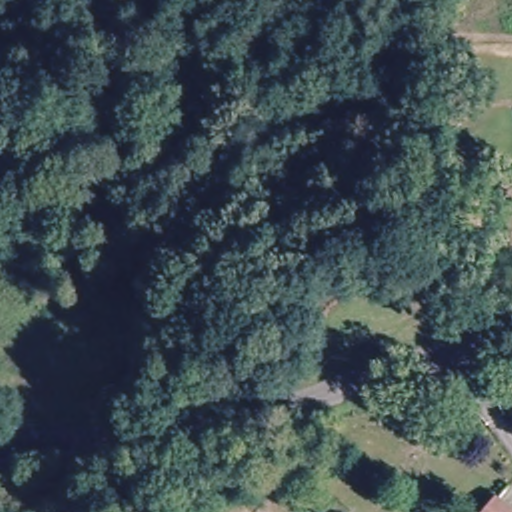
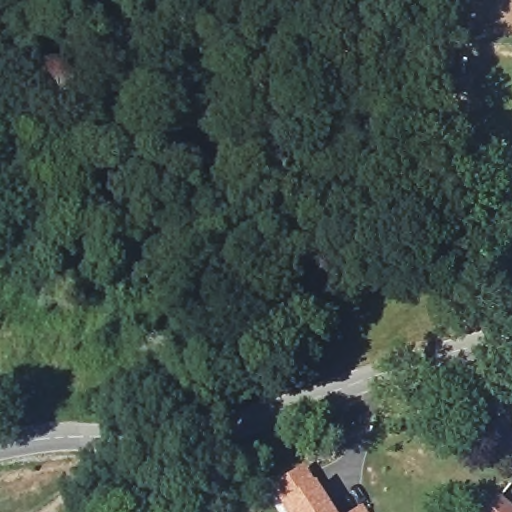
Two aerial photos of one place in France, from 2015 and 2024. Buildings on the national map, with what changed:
new [(333,512),(283,512),(269,490),(304,467),(333,512)]
unchanged [(512,509),(512,512),(483,512),(496,495),(512,509)]
new [(367,512),(352,512),(363,505),(367,512)]

